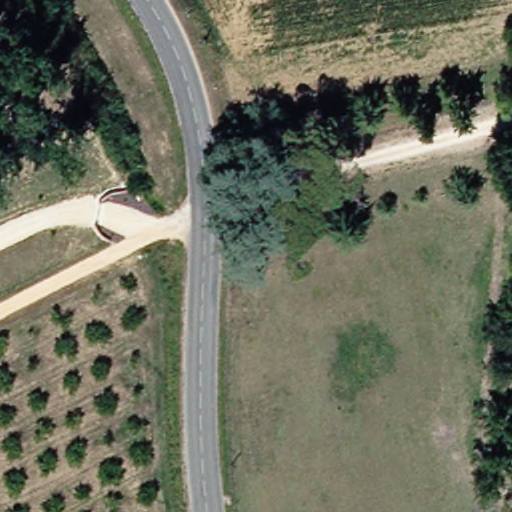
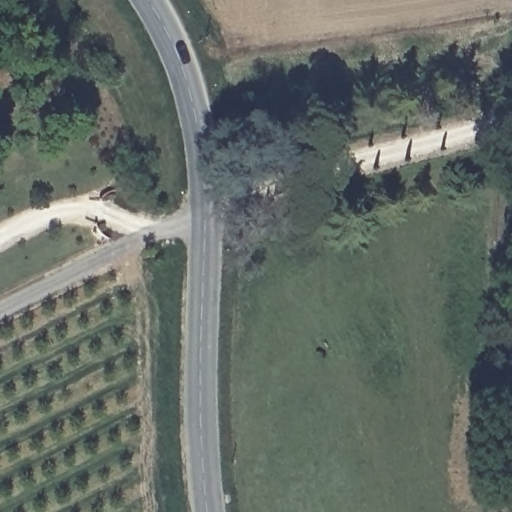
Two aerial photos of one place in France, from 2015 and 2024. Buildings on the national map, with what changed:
[]

